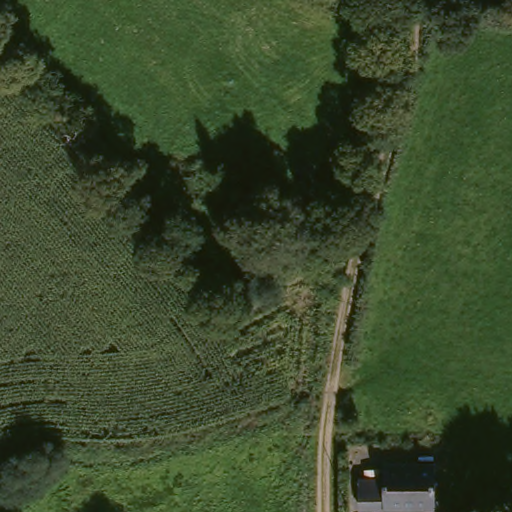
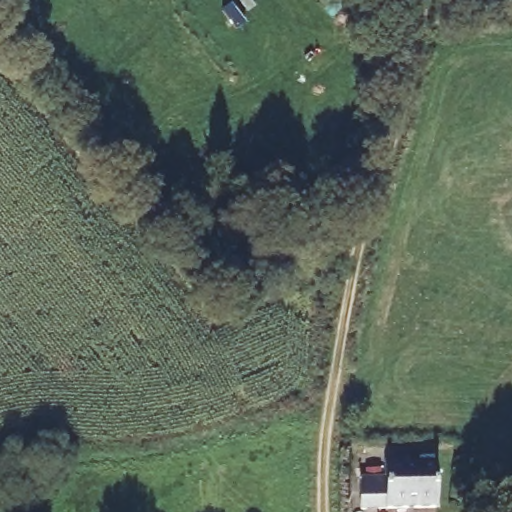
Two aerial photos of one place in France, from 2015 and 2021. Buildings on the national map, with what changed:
unchanged [(438,508),(361,505),(362,474),(385,475),(385,458),(440,460),(438,508)]

